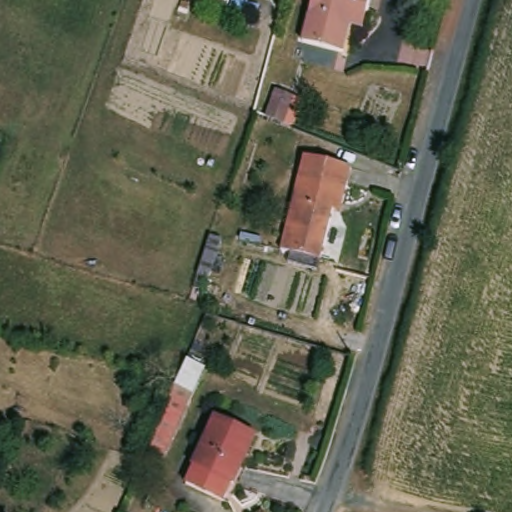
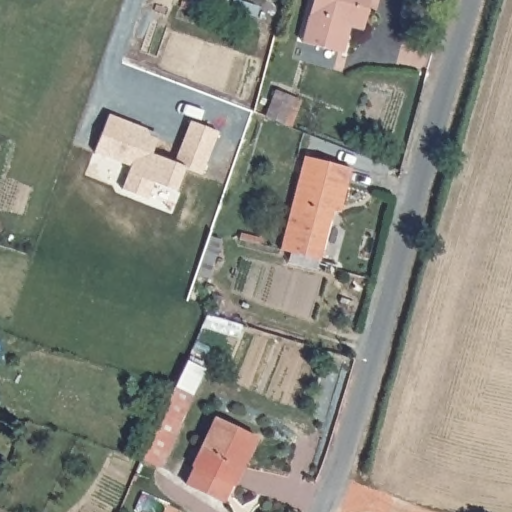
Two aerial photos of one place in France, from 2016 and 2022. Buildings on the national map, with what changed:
unchanged [(352,21),(347,39),(344,48),(304,37),(308,21),(314,0),(371,0),(369,7),(364,25),(352,21)]
new [(100,112),(152,131),(145,150),(167,157),(181,116),(209,126),(195,169),(177,163),(169,187),(147,179),(141,196),(116,187),(124,163),(87,150),(100,112)]
unchanged [(335,213),(321,260),(283,248),(309,156),(357,170),(347,205),(344,216),(335,213)]
unchanged [(163,393),(165,388),(184,397),(158,452),(140,444),(144,435),(158,403),(163,393)]
unchanged [(188,481),(197,464),(221,415),(258,435),(234,483),(226,500),(188,481)]

